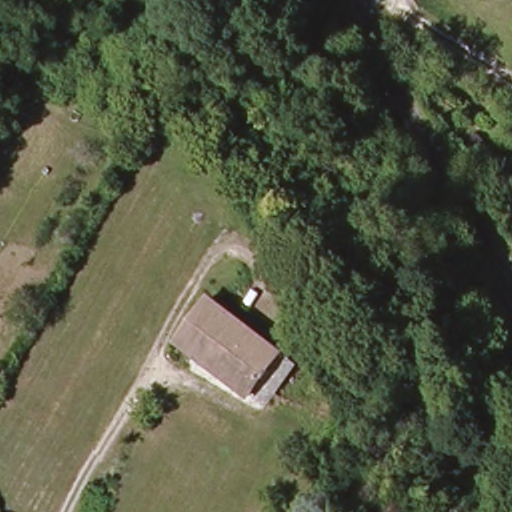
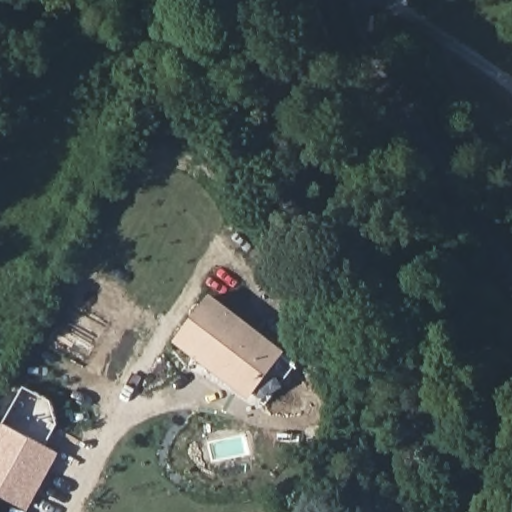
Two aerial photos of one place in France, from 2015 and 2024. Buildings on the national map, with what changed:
unchanged [(455,145),(468,136),(481,153),(468,162),(455,145)]
unchanged [(249,397),(175,342),(210,293),(284,351),(249,397)]
new [(58,423),(46,444),(59,452),(27,510),(0,495),(0,424),(2,420),(4,421),(24,385),(51,400),(58,423)]

